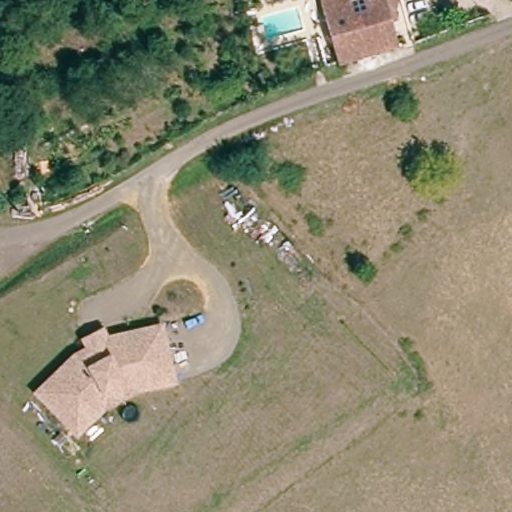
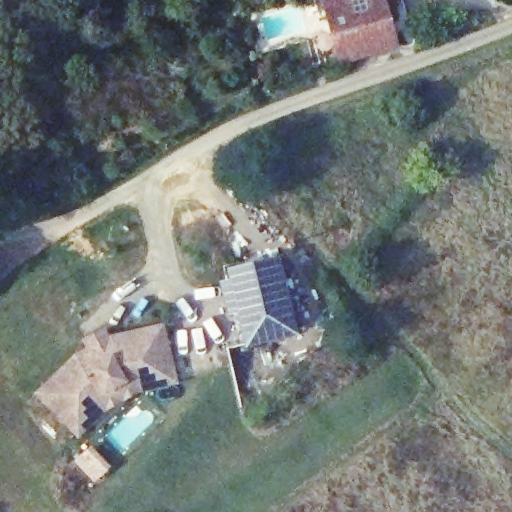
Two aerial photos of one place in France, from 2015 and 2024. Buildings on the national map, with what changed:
unchanged [(338,64),(327,0),(391,0),(400,43),(338,64)]
new [(298,335),(244,348),(235,310),(227,313),(219,283),(229,281),(226,268),(279,255),(298,335)]
unchanged [(175,334),(171,376),(133,371),(92,389),(64,419),(34,392),(69,352),(85,346),(79,336),(96,326),(103,340),(103,334),(175,334)]
unchanged [(170,392),(135,390),(103,402),(76,431),(64,419),(92,389),(133,371),(171,376),(170,392)]

